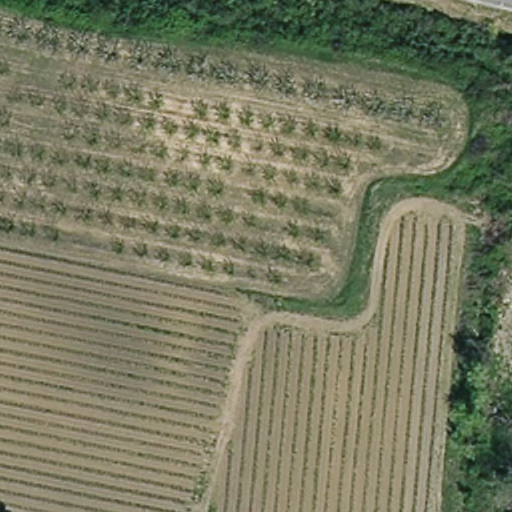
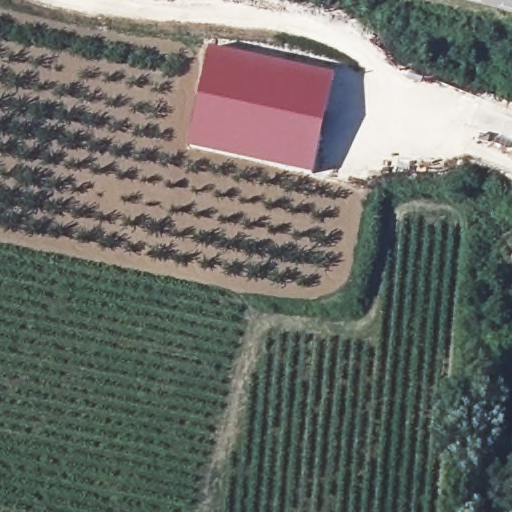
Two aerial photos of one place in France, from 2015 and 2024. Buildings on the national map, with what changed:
new [(335,75),(313,176),(188,146),(210,49),(335,75)]

